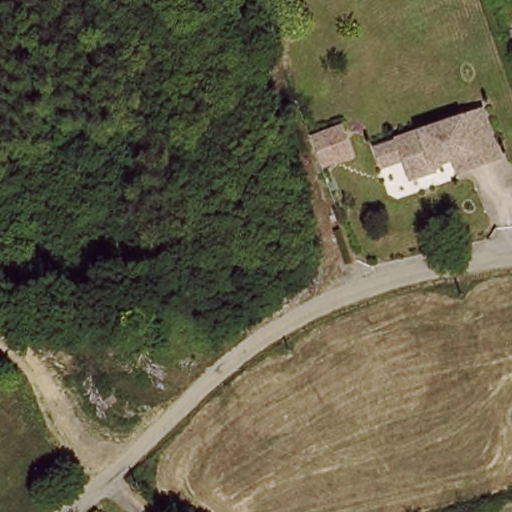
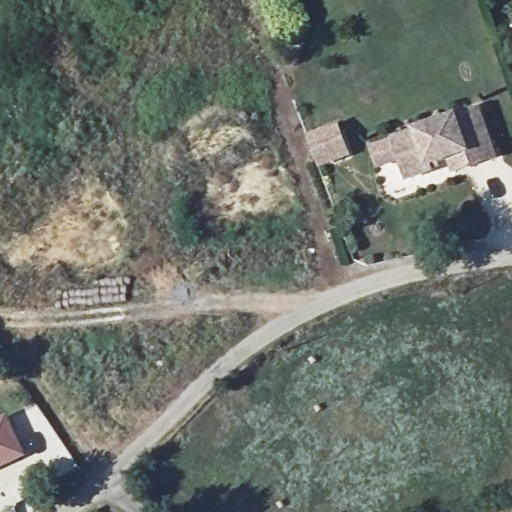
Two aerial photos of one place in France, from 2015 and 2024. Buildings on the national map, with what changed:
unchanged [(453,159),(432,167),(434,170),(410,180),(402,160),(387,166),(382,168),(373,148),(378,146),(395,140),(481,108),(499,156),(475,166),(458,172),(453,159)]
unchanged [(350,125),(360,153),(334,164),(332,165),(321,136),(322,136),(350,125)]
new [(28,456),(0,470),(0,420),(8,416),(28,456)]

